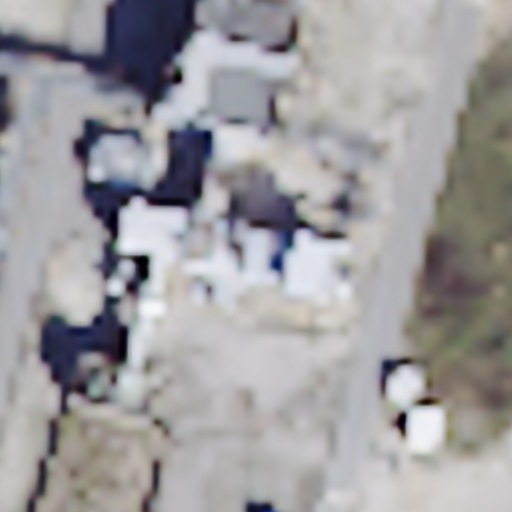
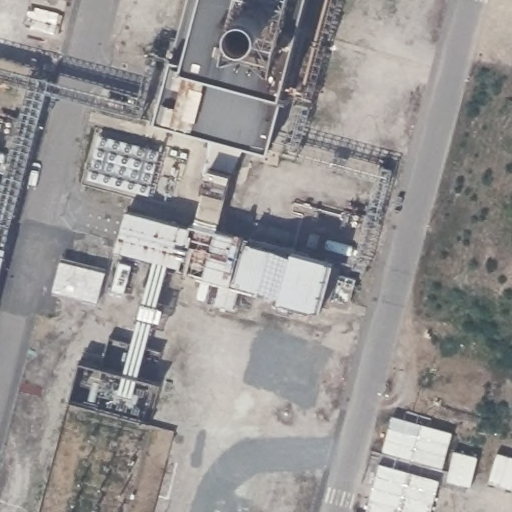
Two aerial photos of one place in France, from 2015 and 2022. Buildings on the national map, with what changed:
unchanged [(269,153),(245,147),(220,238),(326,265),(317,302),(114,250),(125,208),(188,224),(214,136),(167,120),(184,65),(201,0),(309,0),(284,93),(269,153)]
unchanged [(388,174),(362,274),(350,270),(373,184),(277,158),(320,0),(336,0),(296,149),(388,174)]
unchanged [(168,63),(167,68),(154,64),(139,121),(44,95),(1,258),(0,258),(0,181),(24,91),(0,85),(0,71),(134,106),(146,57),(168,63)]
unchanged [(142,146),(130,189),(69,174),(80,130),(142,146)]
unchanged [(142,146),(143,140),(169,146),(154,203),(129,196),(130,189),(142,146)]
unchanged [(90,212),(120,220),(117,232),(88,223),(90,212)]
unchanged [(1,258),(0,260),(0,258),(1,258)]
unchanged [(111,336),(171,352),(164,381),(103,365),(111,336)]
unchanged [(70,402),(81,359),(103,365),(164,381),(152,424),(70,402)]
demolished [(391,435),(460,445),(444,512),(374,512),(391,435)]

